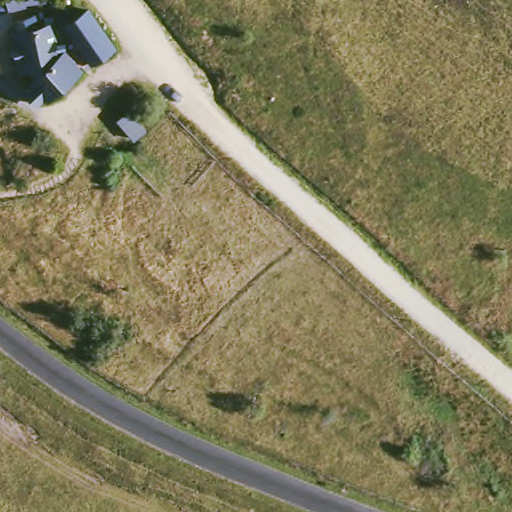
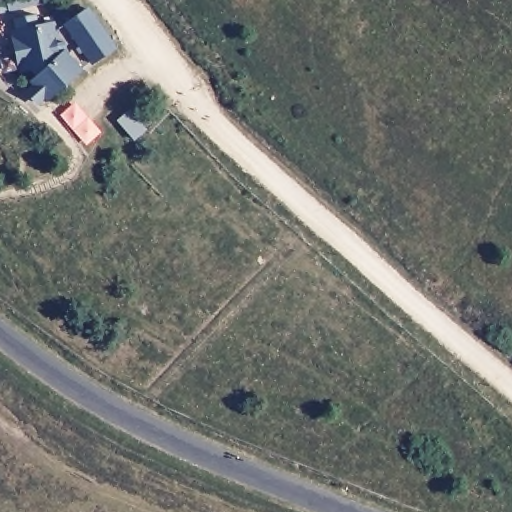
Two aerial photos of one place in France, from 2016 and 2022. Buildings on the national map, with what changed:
unchanged [(85,21),(115,56),(99,68),(72,35),(85,21)]
unchanged [(63,37),(79,88),(38,104),(32,85),(24,86),(14,45),(63,37)]

